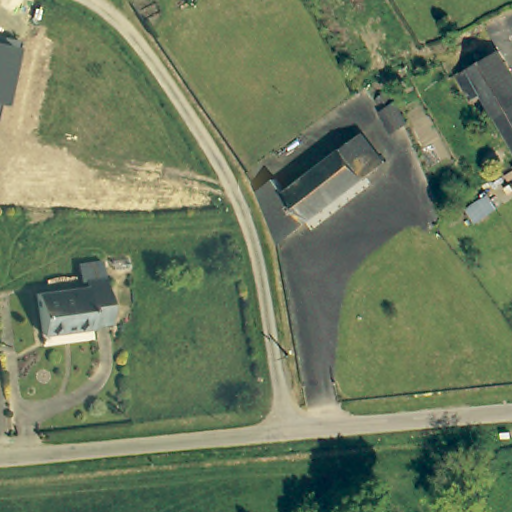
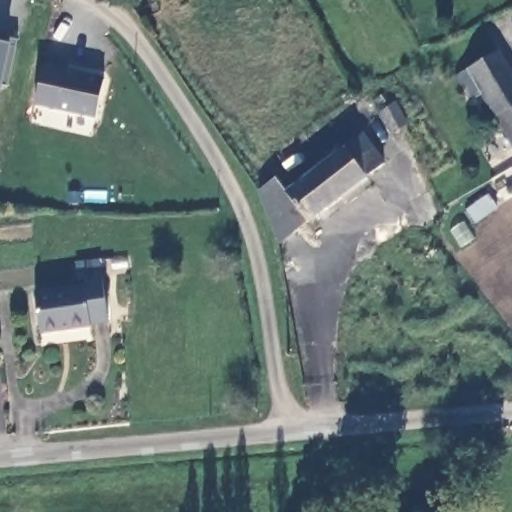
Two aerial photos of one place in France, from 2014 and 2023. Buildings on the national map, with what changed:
unchanged [(8,87),(2,85),(0,95),(0,35),(19,39),(8,87)]
unchanged [(491,100),(480,107),(464,83),(504,56),(512,68),(512,117),(506,121),(491,100)]
new [(48,63),(109,79),(99,116),(39,101),(48,63)]
unchanged [(393,95),(410,120),(397,129),(380,105),(384,103),(379,95),(386,90),(390,97),(393,95)]
unchanged [(512,117),(512,131),(506,121),(512,117)]
unchanged [(278,182),(289,196),(361,136),(384,164),(286,245),(266,211),(261,196),(278,182)]
unchanged [(79,280),(77,265),(105,261),(114,325),(92,327),(93,331),(46,338),(40,294),(86,287),(85,280),(79,280)]

